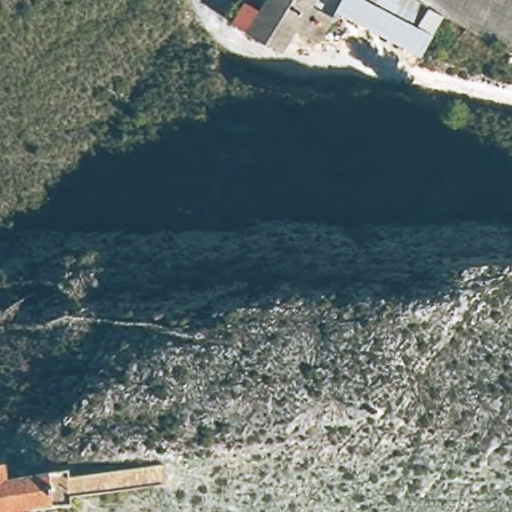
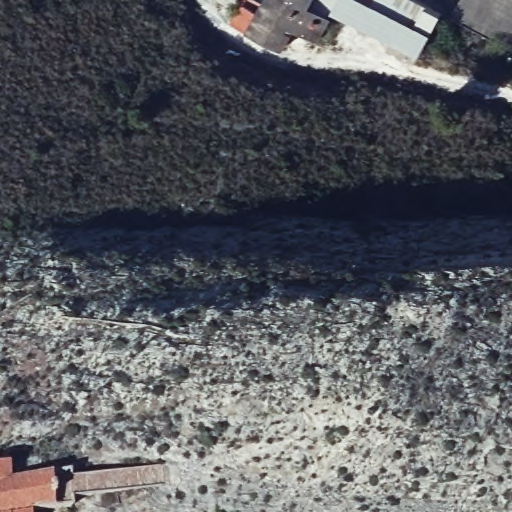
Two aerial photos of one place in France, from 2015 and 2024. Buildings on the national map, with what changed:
unchanged [(441,10),(419,51),(329,10),(312,39),(290,27),(283,49),(228,21),(241,0),(512,0),(512,49),(441,10)]
unchanged [(0,459),(2,458),(5,475),(0,477),(0,459)]
unchanged [(52,487),(56,503),(26,506),(0,507),(0,477),(5,475),(48,470),(52,487)]
unchanged [(27,512),(0,512),(0,507),(26,506),(27,512)]

